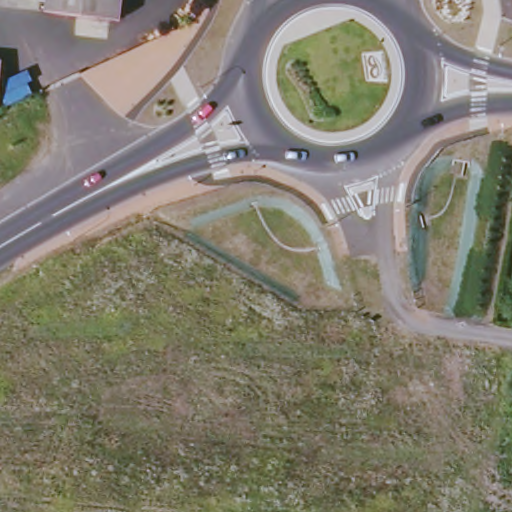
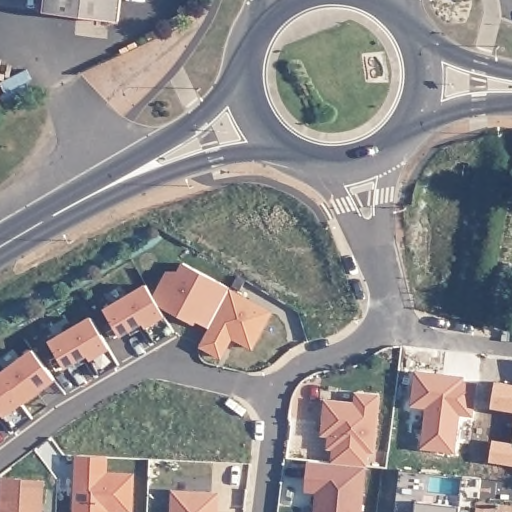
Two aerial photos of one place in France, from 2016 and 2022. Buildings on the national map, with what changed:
unchanged [(48,0),(123,0),(121,20),(48,14),(48,0)]
unchanged [(0,103),(0,60),(3,61),(0,103)]
new [(253,348),(234,339),(222,358),(200,347),(210,327),(196,321),(193,325),(163,308),(155,292),(168,270),(178,271),(183,262),(273,308),(253,348)]
new [(152,339),(142,323),(120,335),(104,307),(147,283),(166,317),(172,329),(152,339)]
new [(98,372),(88,355),(66,366),(50,339),(91,315),(110,350),(117,362),(98,372)]
new [(3,415),(0,416),(0,371),(33,347),(56,381),(25,404),(31,416),(15,430),(3,415)]
new [(465,375),(465,381),(478,383),(475,413),(460,411),(454,450),(423,445),(427,403),(412,401),(417,369),(465,375)]
new [(494,406),(497,380),(512,382),(512,409),(494,406)]
new [(375,452),(369,451),(368,463),(331,459),(332,448),(329,448),(330,434),(323,432),(326,397),(354,400),(355,391),(380,393),(375,452)]
new [(490,461),(494,438),(512,442),(512,464),(490,461)]
new [(110,457),(108,471),(135,473),(134,512),(74,512),(76,455),(110,457)]
new [(306,490),(308,459),(367,466),(363,512),(314,512),(316,491),(306,490)]
new [(45,480),(43,512),(0,512),(3,477),(45,480)]
new [(221,492),(219,512),(171,512),(173,488),(221,492)]
new [(460,504),(459,512),(415,512),(417,500),(460,504)]

